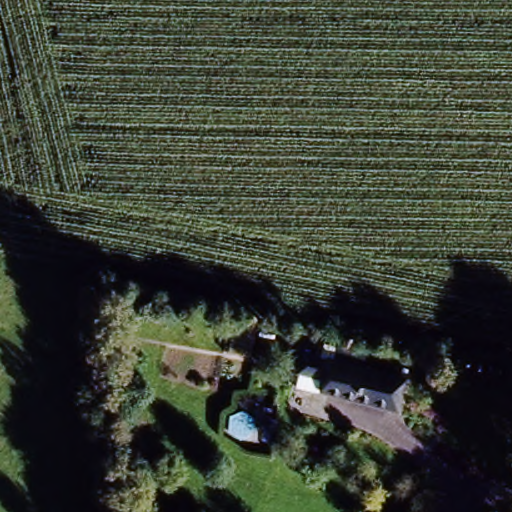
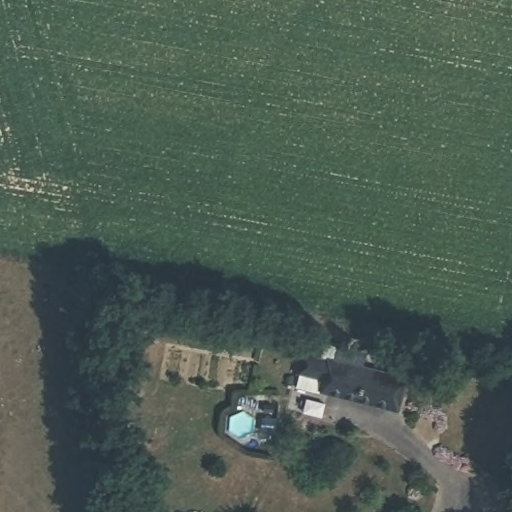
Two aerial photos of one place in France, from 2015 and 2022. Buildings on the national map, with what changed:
unchanged [(359,404),(299,391),(302,373),(284,369),(287,353),(366,371),(359,404)]
unchanged [(366,371),(397,377),(391,411),(359,404),(366,371)]

